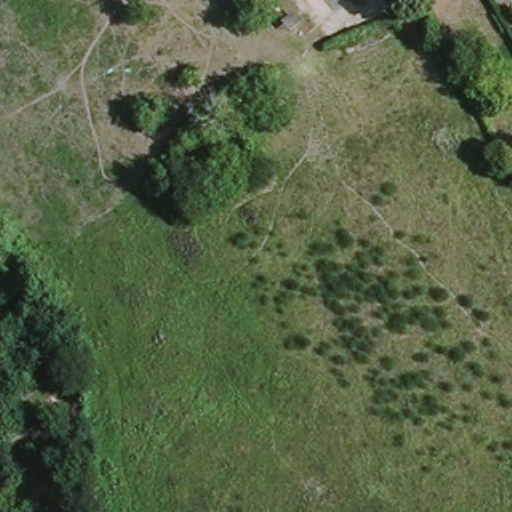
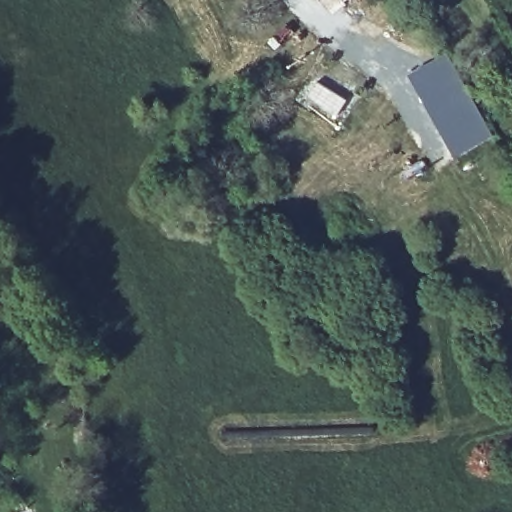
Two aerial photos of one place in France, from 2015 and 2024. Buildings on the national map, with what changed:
new [(445,52),(494,136),(453,159),(407,75),(445,52)]

